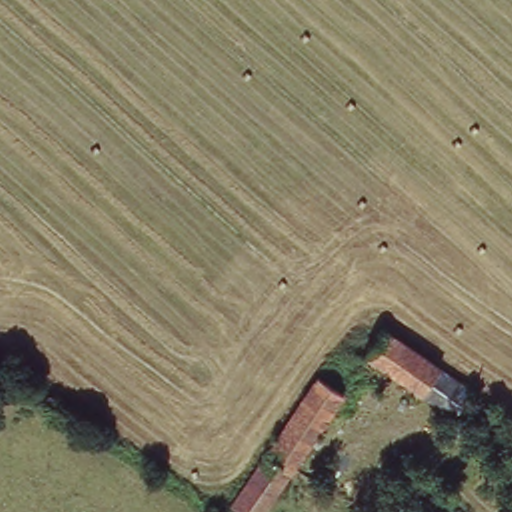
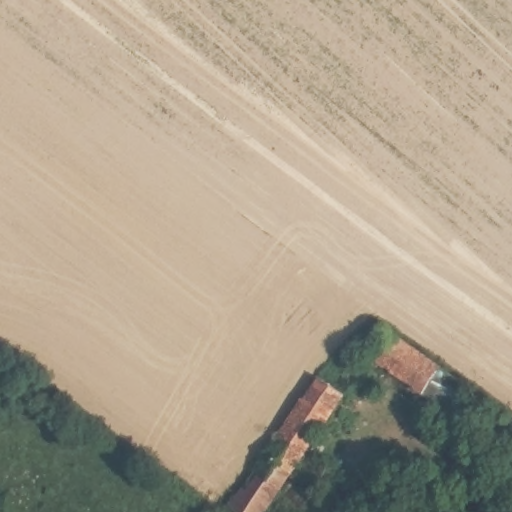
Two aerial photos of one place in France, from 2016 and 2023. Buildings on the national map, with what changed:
unchanged [(440,367),(421,394),(366,355),(385,328),(440,367)]
unchanged [(453,417),(421,394),(440,367),(471,388),(453,417)]
unchanged [(290,483),(263,465),(321,378),(337,390),(349,398),(297,474),(290,483)]
unchanged [(270,512),(231,512),(263,465),(290,483),(270,512)]

